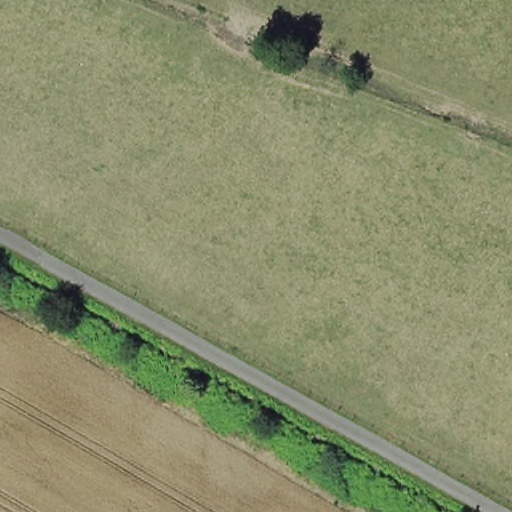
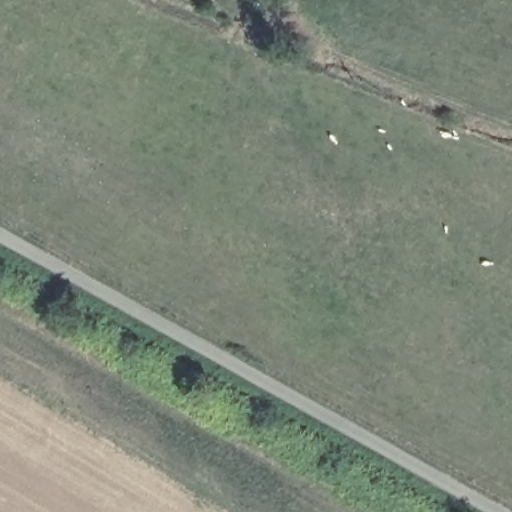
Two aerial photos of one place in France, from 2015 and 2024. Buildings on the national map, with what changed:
[]

